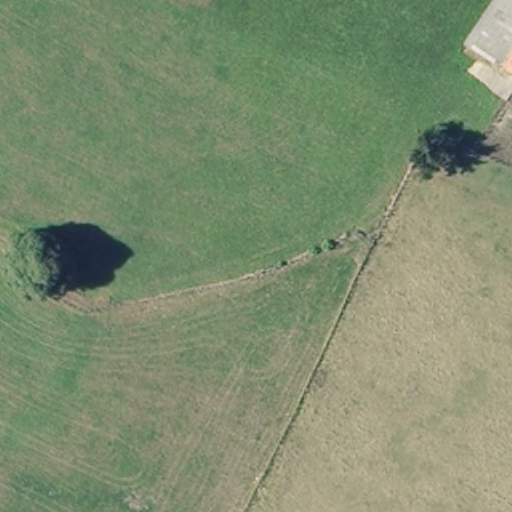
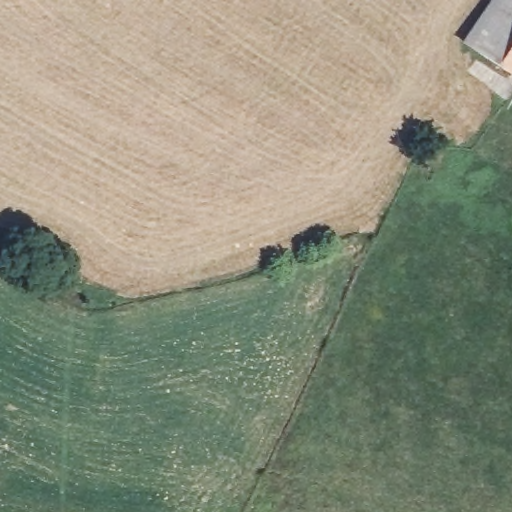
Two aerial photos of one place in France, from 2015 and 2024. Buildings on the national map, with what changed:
unchanged [(467,42),(494,0),(512,0),(512,43),(499,62),(467,42)]
unchanged [(512,43),(512,70),(499,62),(512,43)]

